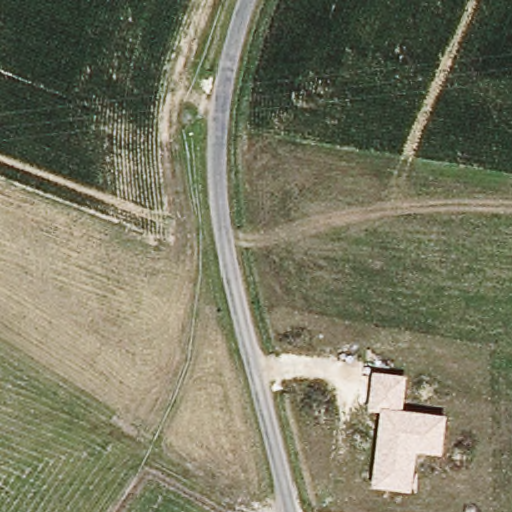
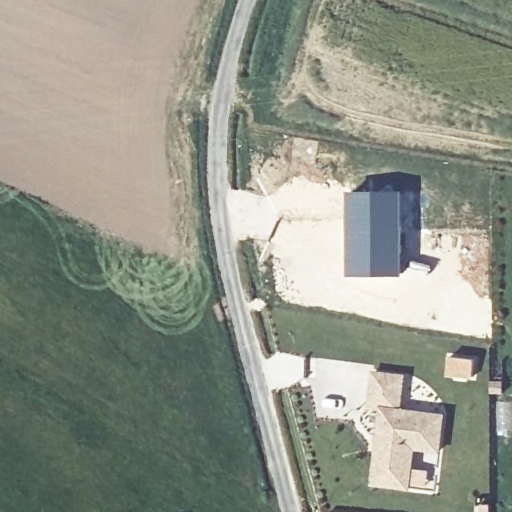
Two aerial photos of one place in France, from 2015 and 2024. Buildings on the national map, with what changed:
new [(348,191),(406,190),(404,276),(347,276),(348,191)]
unchanged [(407,375),(402,409),(445,415),(441,455),(416,452),(411,493),(372,487),(380,411),(369,410),(373,371),(407,375)]

